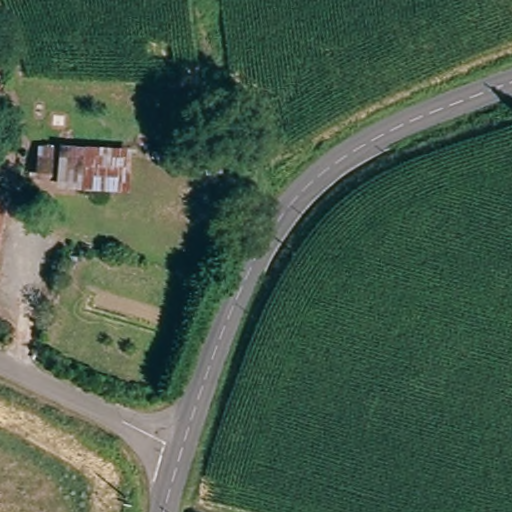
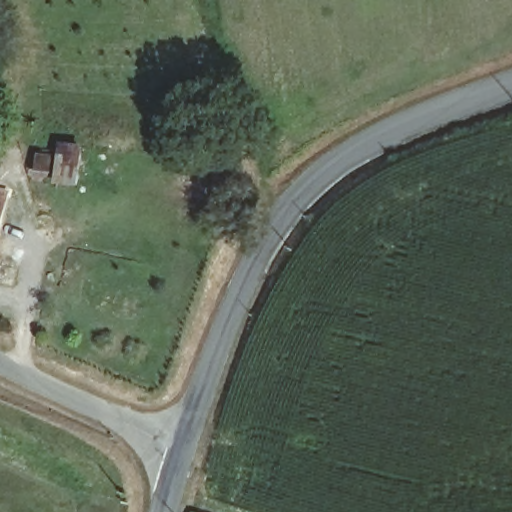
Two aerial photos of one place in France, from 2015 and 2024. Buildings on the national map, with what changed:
unchanged [(86,182),(65,179),(66,170),(46,166),(49,140),(90,147),(86,182)]
unchanged [(129,153),(127,188),(86,182),(90,147),(129,153)]
unchanged [(0,216),(0,187),(7,189),(0,216)]

